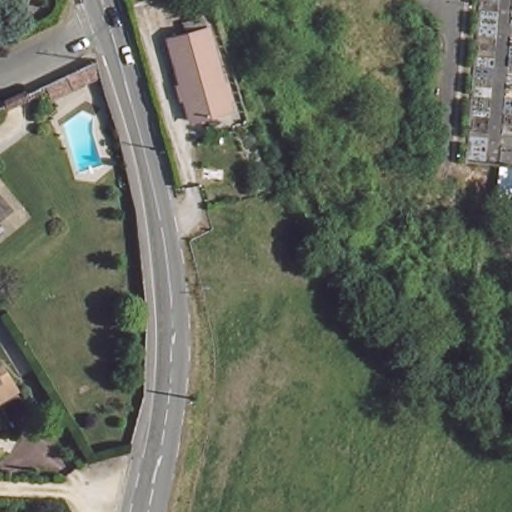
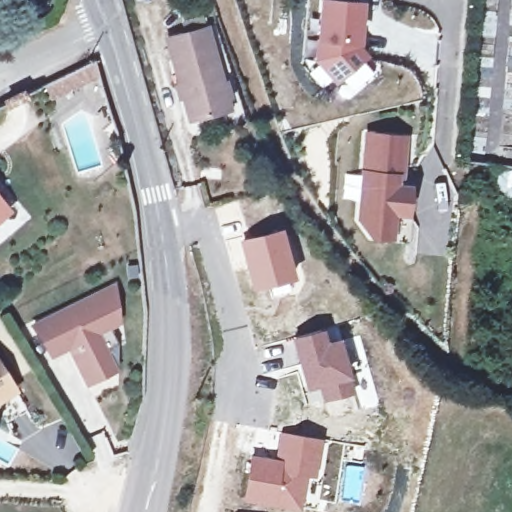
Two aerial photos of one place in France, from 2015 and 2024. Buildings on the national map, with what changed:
new [(360,46),(368,59),(335,86),(314,61),(318,0),(344,0),(364,1),(360,46)]
unchanged [(230,106),(191,118),(167,37),(205,24),(230,106)]
new [(365,127),(402,130),(398,180),(407,181),(405,207),(391,206),(389,231),(370,230),(358,214),(365,127)]
new [(281,227),(294,278),(251,289),(237,239),(281,227)]
new [(116,282),(123,324),(110,330),(118,345),(116,372),(86,387),(66,351),(51,359),(31,324),(116,282)]
new [(318,330),(321,345),(338,342),(353,395),(326,400),(322,380),(306,385),(294,335),(318,330)]
unchanged [(0,387),(0,367),(8,380),(0,387)]
new [(278,463),(281,432),(327,440),(316,510),(245,497),(251,459),(278,463)]

